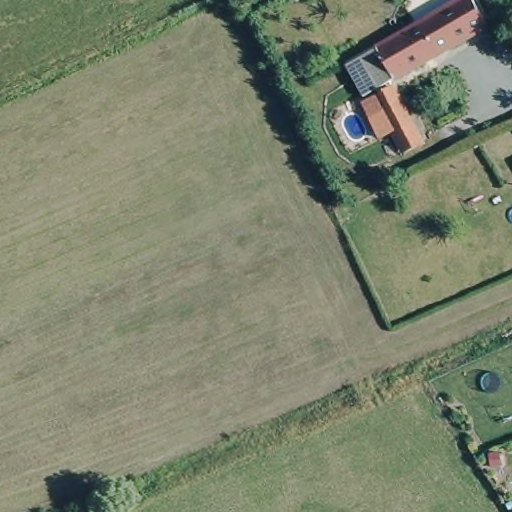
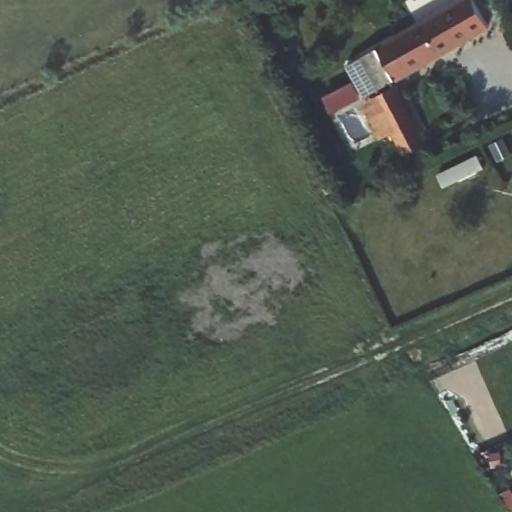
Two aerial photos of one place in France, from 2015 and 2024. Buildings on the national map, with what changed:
unchanged [(469,0),(485,26),(377,88),(358,58),(376,48),(457,0),(469,0)]
unchanged [(397,151),(372,99),(382,94),(390,90),(415,141),(407,146),(397,151)]

